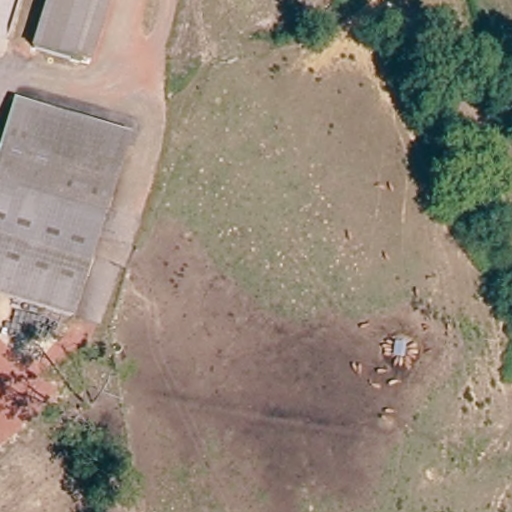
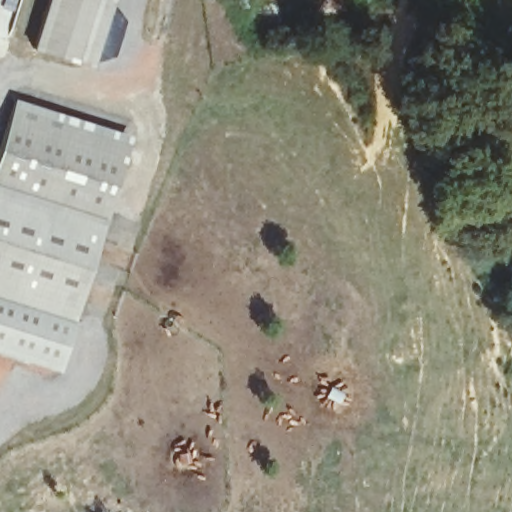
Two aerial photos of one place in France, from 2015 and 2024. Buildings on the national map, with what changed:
unchanged [(89,65),(35,49),(40,31),(50,0),(109,0),(89,65)]
unchanged [(0,299),(0,159),(16,105),(132,141),(76,322),(0,299)]
new [(0,352),(0,299),(74,321),(59,371),(0,352)]

